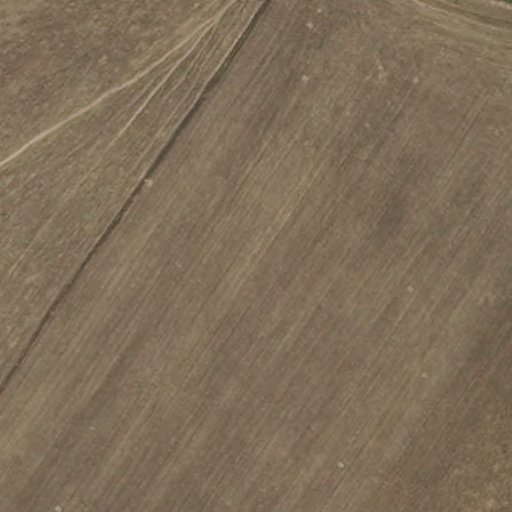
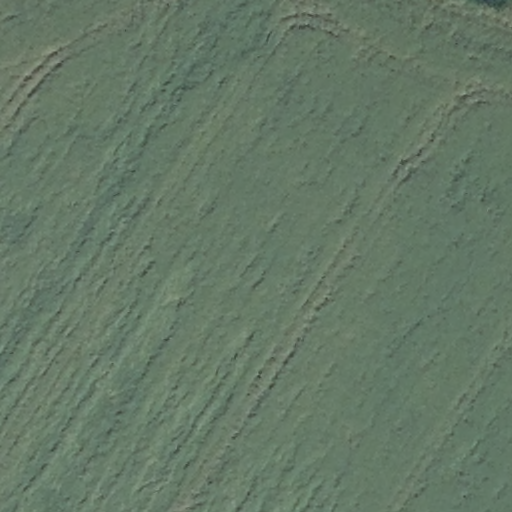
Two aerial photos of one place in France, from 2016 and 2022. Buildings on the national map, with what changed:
[]

